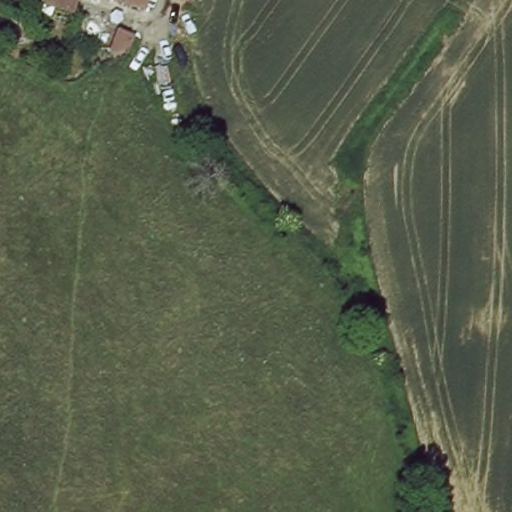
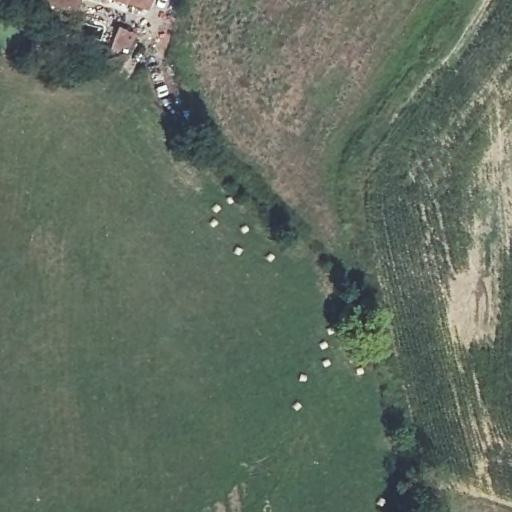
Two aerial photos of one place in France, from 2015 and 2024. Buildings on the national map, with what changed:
unchanged [(75,13),(41,3),(42,0),(79,0),(75,13)]
unchanged [(147,0),(143,11),(107,0),(147,0)]

